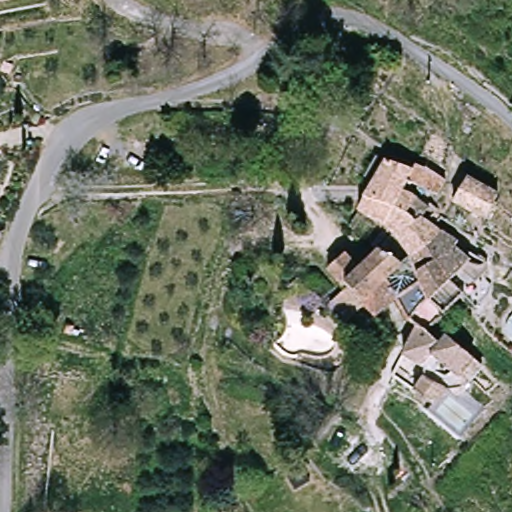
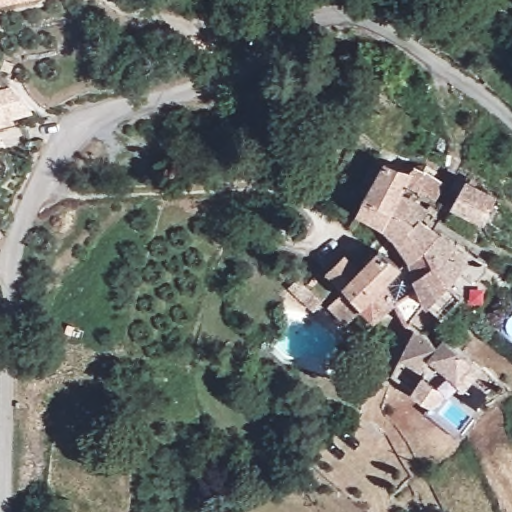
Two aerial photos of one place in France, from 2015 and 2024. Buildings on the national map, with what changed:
unchanged [(0,0),(14,0),(0,3),(0,0)]
new [(34,114),(0,122),(0,91),(10,87),(34,114)]
unchanged [(389,233),(358,214),(363,201),(364,196),(369,184),(381,164),(398,173),(412,171),(434,190),(428,203),(399,186),(392,197),(404,204),(424,214),(417,225),(440,237),(459,247),(457,251),(473,259),(457,276),(468,287),(462,292),(447,304),(425,319),(416,307),(402,291),(393,297),(379,307),(366,294),(345,323),(327,299),(344,285),(329,271),(346,254),(361,269),(364,265),(371,256),(389,233)]
unchanged [(499,199),(485,222),(452,200),(466,178),(499,199)]
unchanged [(0,231),(0,229),(1,230),(0,231)]
unchanged [(415,323),(444,343),(446,332),(474,357),(457,384),(435,359),(425,371),(451,390),(431,406),(409,385),(419,368),(398,353),(415,323)]

